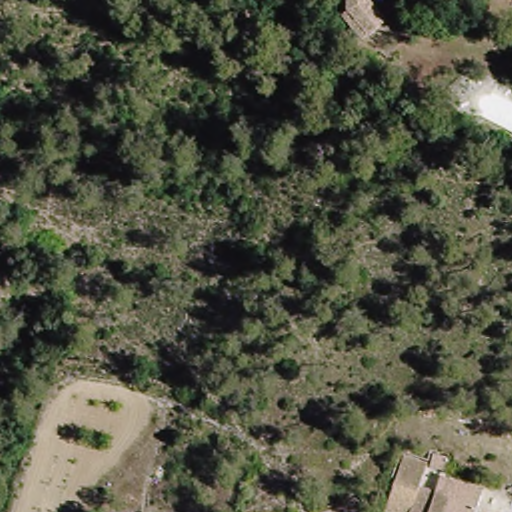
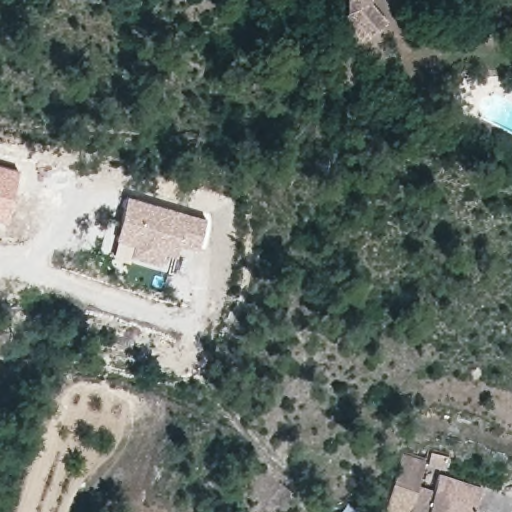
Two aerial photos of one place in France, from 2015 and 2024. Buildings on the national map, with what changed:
unchanged [(388,37),(380,46),(355,21),(356,0),(380,0),(381,9),(385,5),(403,22),(388,37)]
new [(20,170),(6,221),(0,219),(0,165),(20,170)]
new [(111,242),(113,242),(127,196),(208,221),(199,251),(180,246),(176,257),(163,254),(159,266),(112,255),(113,249),(108,247),(111,242)]
unchanged [(395,510),(412,453),(436,462),(427,487),(418,512),(401,512),(395,510)]
unchanged [(478,506),(476,512),(418,512),(427,487),(478,506)]

